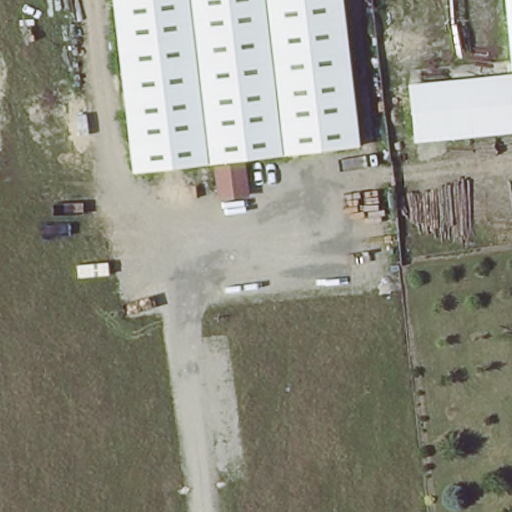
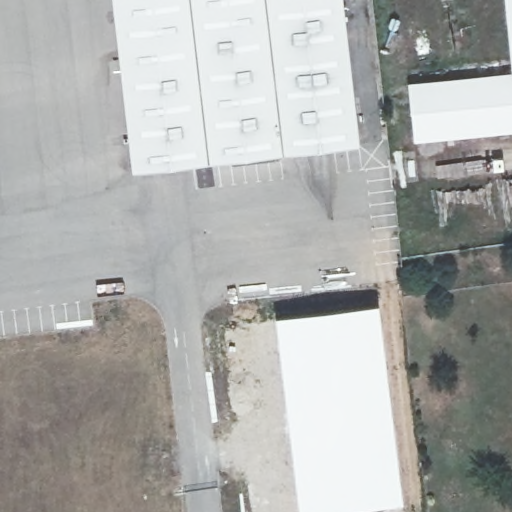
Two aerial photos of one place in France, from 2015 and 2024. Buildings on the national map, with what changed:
unchanged [(357,148),(133,176),(112,0),(341,0),(357,148)]
unchanged [(506,0),(512,0),(512,59),(506,0)]
unchanged [(414,144),(408,85),(512,74),(512,134),(414,144)]
new [(403,503),(331,512),(299,512),(274,315),(379,302),(403,503)]

